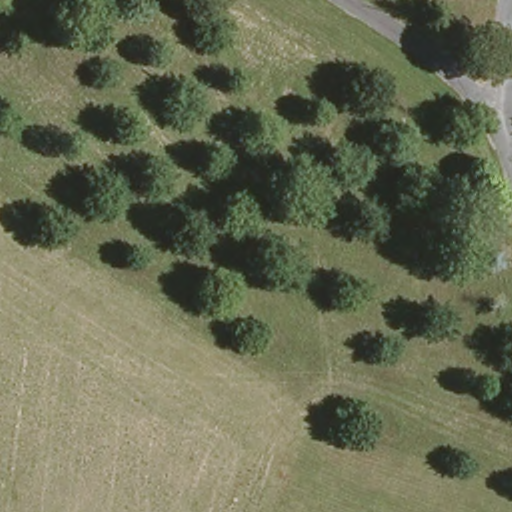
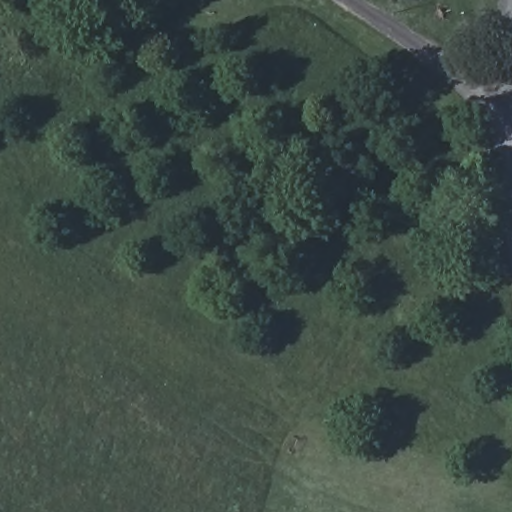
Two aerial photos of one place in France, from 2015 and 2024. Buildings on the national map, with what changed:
[]

